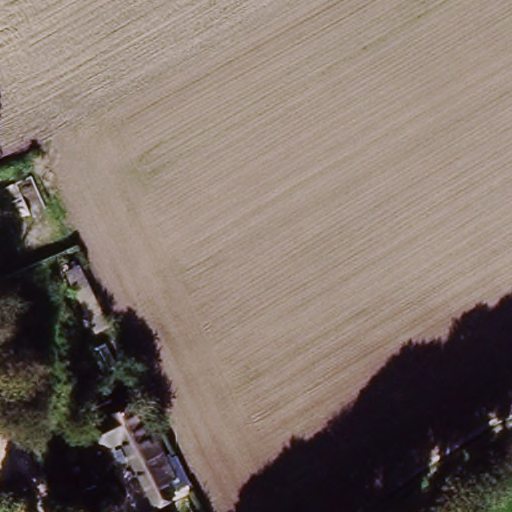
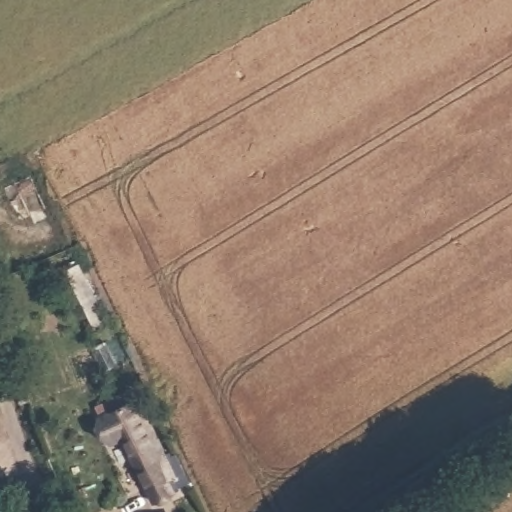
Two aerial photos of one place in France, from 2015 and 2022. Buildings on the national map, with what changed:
unchanged [(143,391),(145,397),(162,436),(137,447),(127,424),(115,429),(105,406),(143,391)]
unchanged [(137,447),(162,436),(162,437),(179,480),(155,489),(137,447)]

